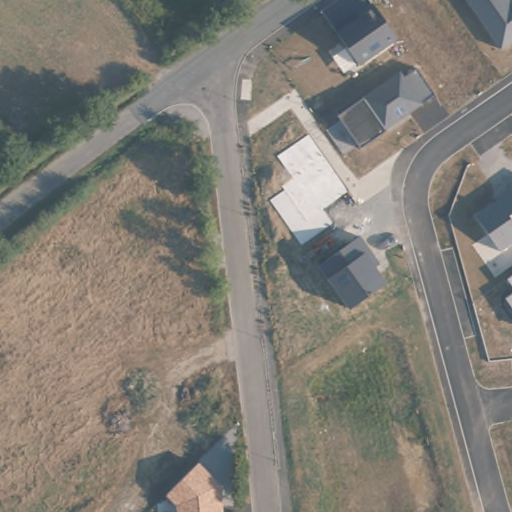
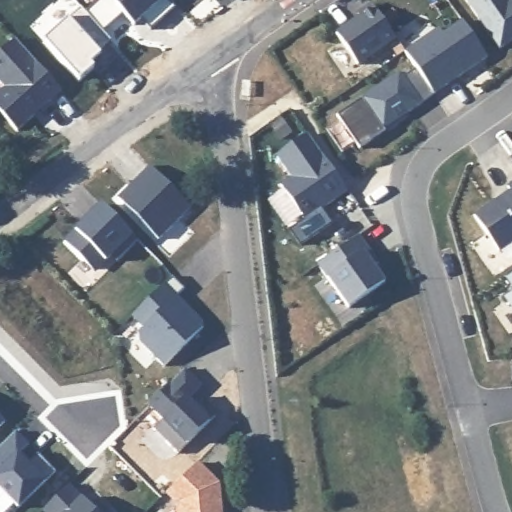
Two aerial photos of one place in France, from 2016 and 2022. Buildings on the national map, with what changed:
new [(169,0),(173,4),(148,26),(139,16),(132,22),(121,11),(101,29),(83,9),(94,0),(169,0)]
demolished [(227,0),(243,0),(233,7),(227,0)]
unchanged [(512,0),(512,42),(499,49),(466,0),(512,0)]
unchanged [(334,27),(370,2),(397,38),(358,65),(334,27)]
new [(78,4),(83,9),(101,29),(108,37),(96,48),(98,51),(88,60),(92,64),(77,77),(41,37),(78,4)]
new [(403,51),(437,28),(442,34),(462,21),(488,58),(432,96),(415,70),(403,51)]
new [(15,133),(0,116),(0,93),(3,90),(0,87),(0,53),(13,41),(59,93),(47,104),(32,117),(15,133)]
unchanged [(336,117),(361,98),(399,71),(404,78),(415,70),(432,96),(420,103),(385,131),(357,149),(336,117)]
unchanged [(281,185),(291,180),(275,156),(304,133),(346,191),(304,220),(281,185)]
new [(150,166),(191,207),(158,239),(118,198),(150,166)]
unchanged [(508,190),(504,185),(512,180),(512,241),(500,249),(474,213),(508,190)]
new [(100,204),(135,240),(114,261),(108,255),(92,272),(62,242),(100,204)]
unchanged [(373,264),(386,282),(349,307),(327,277),(316,263),(359,235),(380,262),(373,264)]
unchanged [(512,274),(512,289),(504,278),(512,274)]
new [(185,288),(178,295),(184,302),(203,321),(204,327),(164,366),(140,341),(138,333),(144,327),(132,316),(173,276),(185,288)]
unchanged [(512,293),(512,312),(502,300),(512,293)]
new [(186,369),(202,385),(188,399),(198,409),(204,403),(216,415),(178,453),(154,429),(163,419),(150,405),(186,369)]
new [(2,418),(0,420),(0,416),(2,418)]
new [(12,428),(25,441),(15,451),(25,462),(35,452),(51,468),(15,505),(0,490),(0,441),(12,428)]
unchanged [(224,512),(177,512),(176,504),(165,493),(198,461),(221,481),(224,512)]
new [(70,483),(91,505),(97,498),(112,512),(45,512),(43,510),(70,483)]

